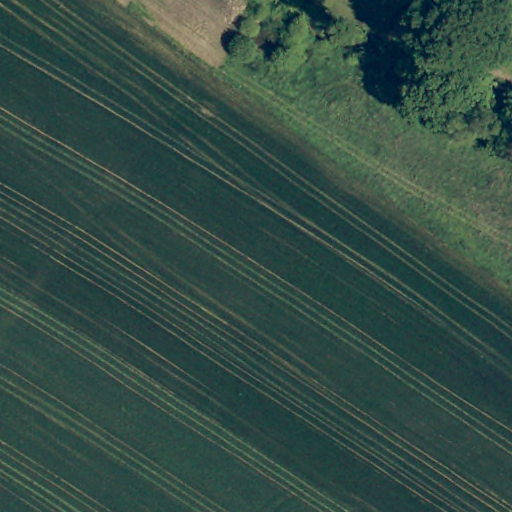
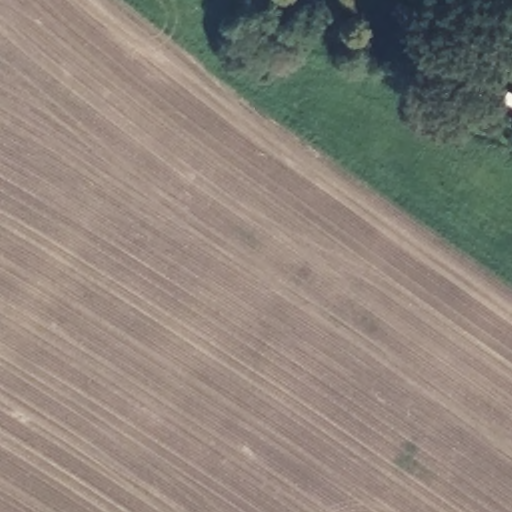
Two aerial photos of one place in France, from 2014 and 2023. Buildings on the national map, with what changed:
unchanged [(394,32),(402,21),(425,35),(419,47),(394,32)]
unchanged [(474,45),(478,31),(494,37),(490,50),(474,45)]

